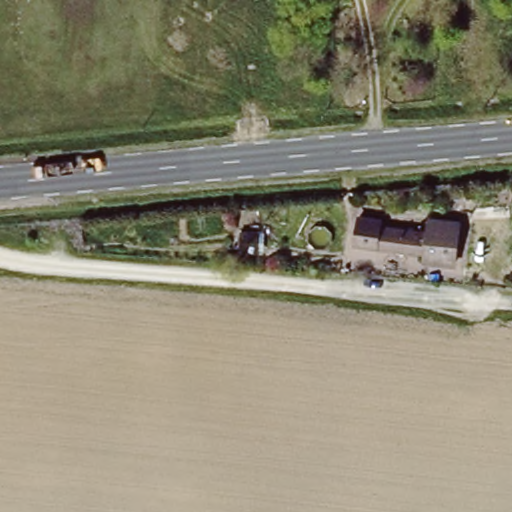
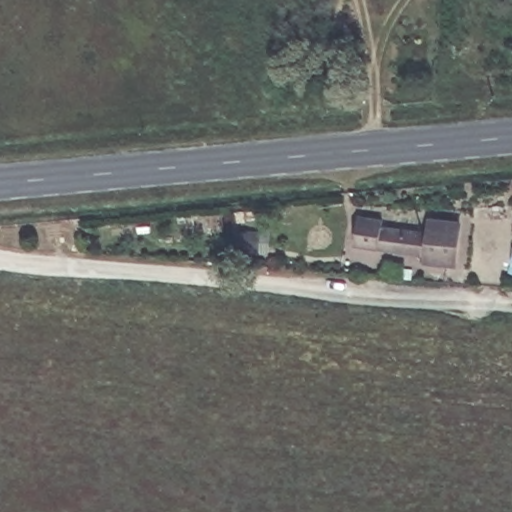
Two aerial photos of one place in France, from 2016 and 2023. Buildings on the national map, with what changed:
unchanged [(430,261),(430,251),(379,250),(357,250),(357,224),(379,225),(379,230),(430,230),(430,214),(460,214),(460,231),(460,262),(430,261)]

